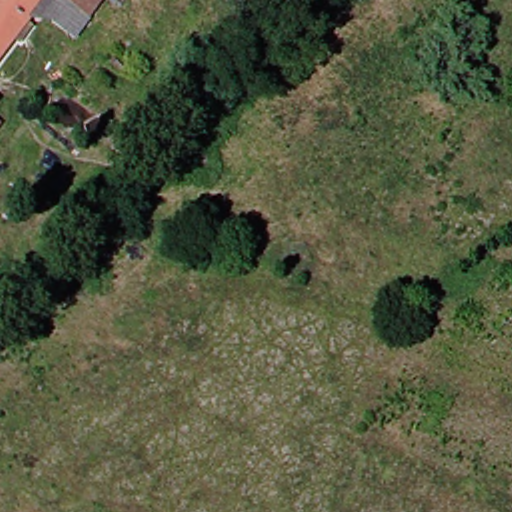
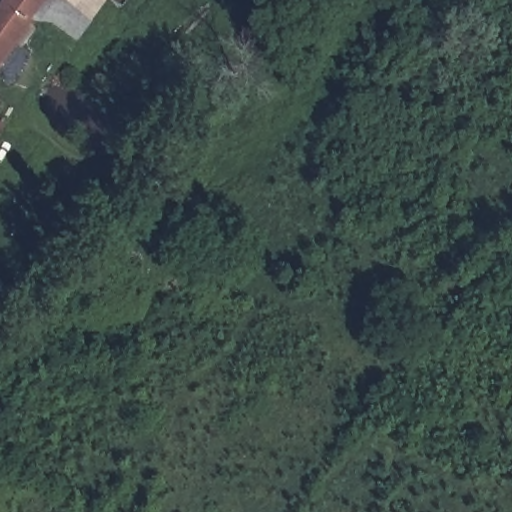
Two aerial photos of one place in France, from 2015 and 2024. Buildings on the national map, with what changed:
unchanged [(0,0),(100,0),(102,1),(91,14),(64,48),(40,29),(26,18),(0,54),(0,0)]
unchanged [(0,134),(0,129),(2,131),(0,134)]

